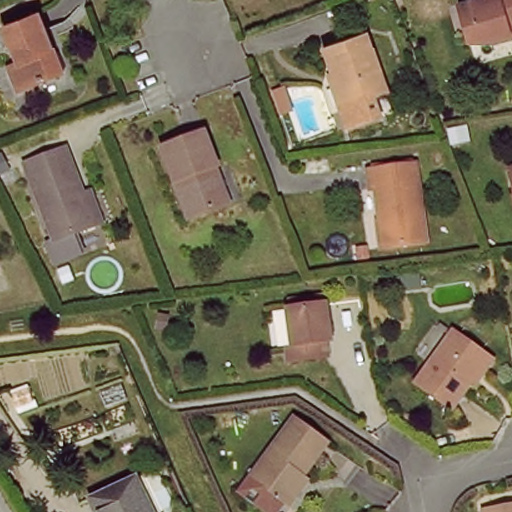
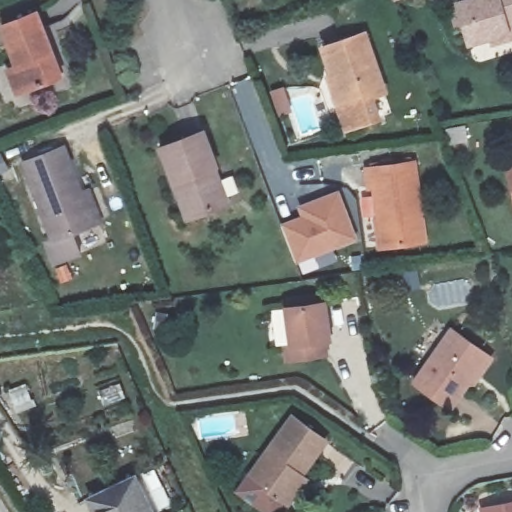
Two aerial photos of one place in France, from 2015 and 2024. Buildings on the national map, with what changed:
new [(392,0),(398,0),(393,1),(392,0)]
unchanged [(469,45),(464,45),(453,4),(471,0),(512,0),(512,4),(512,39),(470,51),(469,45)]
unchanged [(35,15),(60,78),(15,95),(5,73),(15,69),(0,34),(0,30),(35,15)]
unchanged [(371,127),(336,132),(323,46),(365,40),(375,101),(368,103),(371,127)]
unchanged [(202,134),(217,169),(213,170),(227,207),(196,219),(182,184),(172,187),(160,152),(202,134)]
unchanged [(64,152),(96,229),(56,245),(24,167),(64,152)]
unchanged [(413,166),(425,239),(385,247),(374,190),(370,190),(366,173),(413,166)]
new [(303,215),(299,205),(341,189),(360,237),(299,262),(282,222),(303,215)]
unchanged [(324,346),(326,363),(289,369),(277,309),(326,303),(334,343),(324,346)]
unchanged [(450,407),(418,378),(459,329),(492,358),(450,407)]
unchanged [(294,509),(284,502),(248,476),(293,416),(329,441),(307,469),(315,477),(294,509)]
unchanged [(91,509),(138,486),(151,512),(92,512),(91,509)]
unchanged [(481,505),(512,498),(512,512),(482,512),(481,505)]

